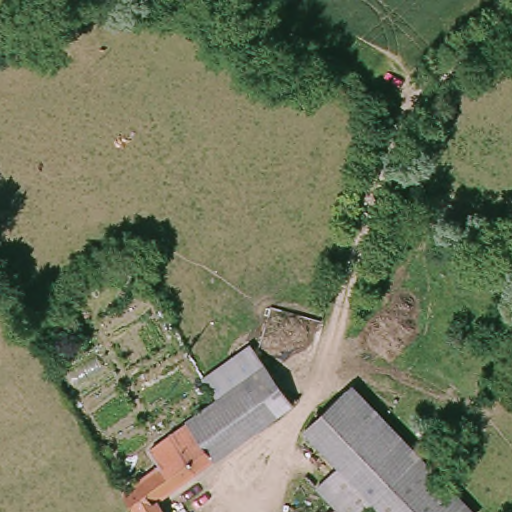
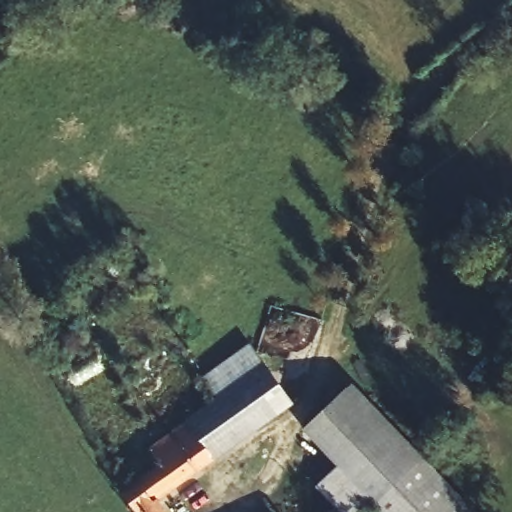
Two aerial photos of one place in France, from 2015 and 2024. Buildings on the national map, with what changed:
unchanged [(291,403),(158,501),(164,512),(132,512),(121,493),(155,462),(147,447),(214,397),(201,375),(250,343),(291,403)]
unchanged [(409,450),(392,470),(370,497),(341,471),(302,436),(331,402),(347,386),(392,428),(389,431),(409,450)]
unchanged [(417,458),(420,454),(425,458),(477,505),(471,512),(449,512),(417,458)]
unchanged [(417,458),(449,512),(385,512),(376,503),(417,458)]
unchanged [(376,503),(368,512),(333,512),(332,511),(317,496),(341,471),(370,497),(376,503)]

